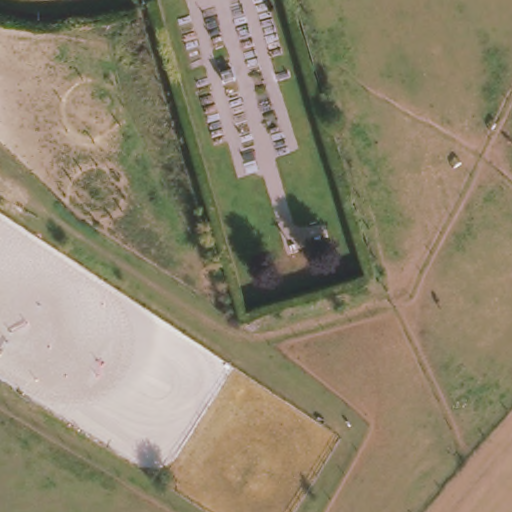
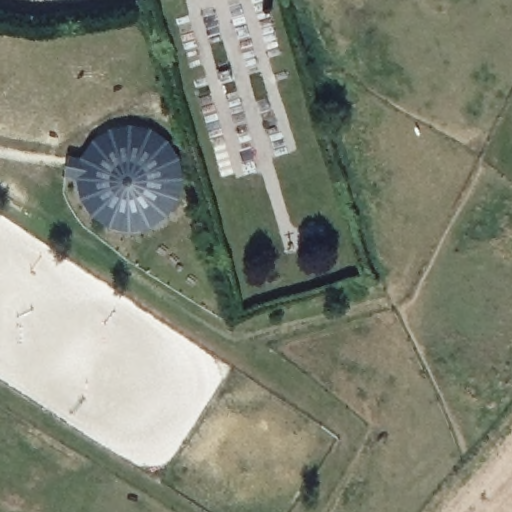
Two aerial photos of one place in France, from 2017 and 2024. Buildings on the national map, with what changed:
new [(82,197),(79,175),(67,173),(72,152),(84,154),(95,138),(110,127),(131,123),(153,127),(170,138),(182,157),(185,177),(180,198),(169,213),(152,226),(130,230),(111,225),(95,214),(82,197)]

